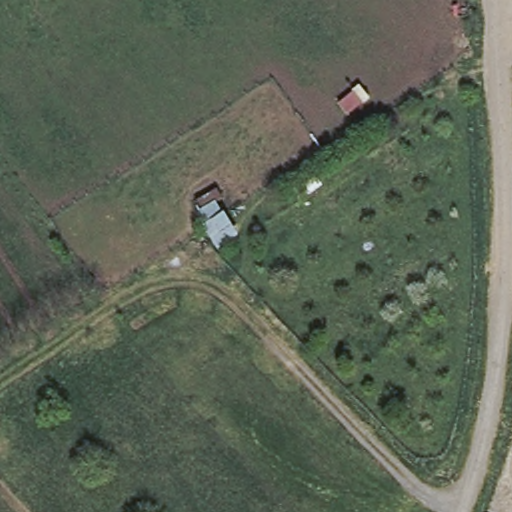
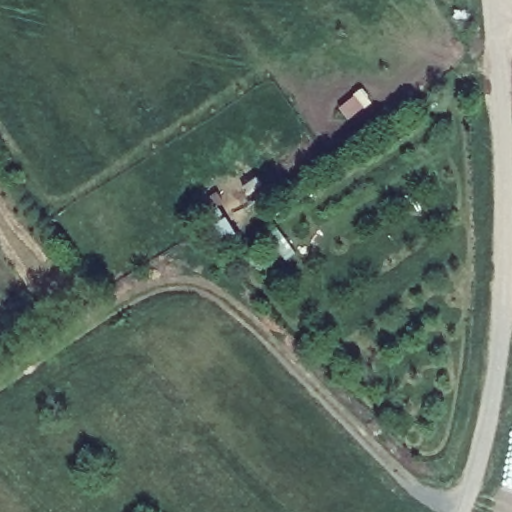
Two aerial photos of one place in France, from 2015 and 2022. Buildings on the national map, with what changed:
unchanged [(202,228),(208,226),(198,212),(202,210),(196,202),(217,191),(225,205),(219,206),(225,215),(240,239),(217,252),(202,228)]

